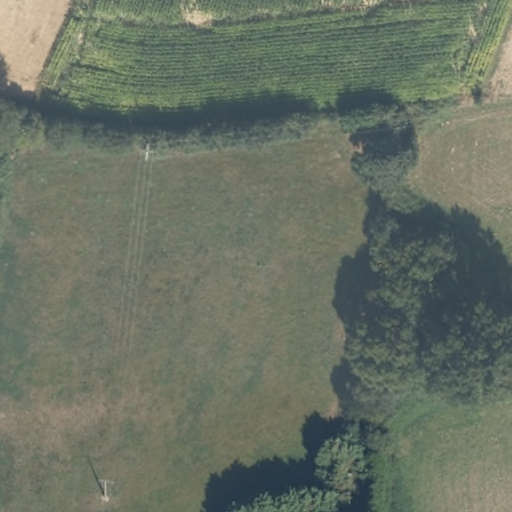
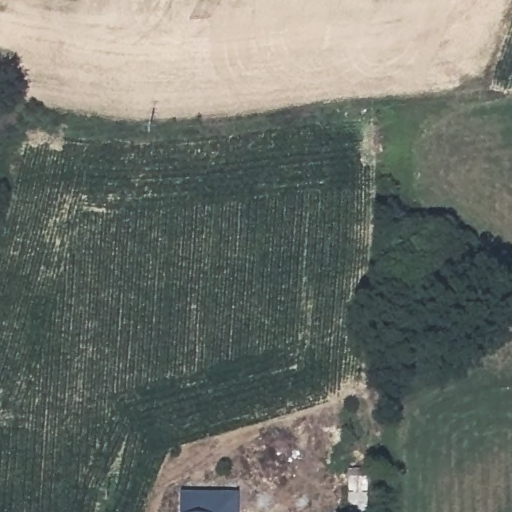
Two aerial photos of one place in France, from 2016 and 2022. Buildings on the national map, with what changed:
new [(237,493),(237,512),(179,512),(179,493),(237,493)]

